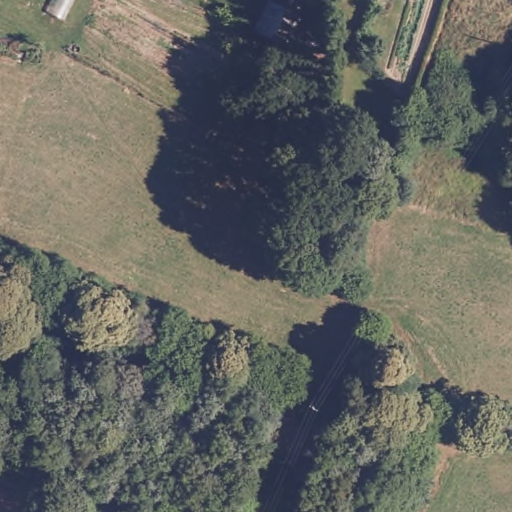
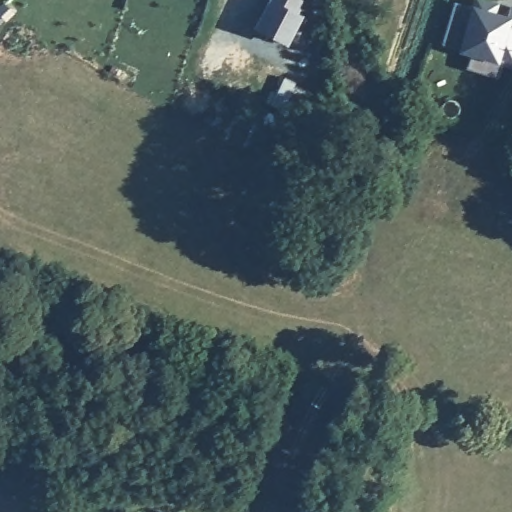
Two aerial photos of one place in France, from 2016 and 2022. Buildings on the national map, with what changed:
unchanged [(253,24),(264,0),(292,0),(290,6),(297,9),(283,39),(253,24)]
new [(499,66),(496,77),(466,69),(472,54),(458,50),(441,45),(456,2),(470,7),(472,0),(485,0),(495,4),(492,13),(508,17),(510,5),(512,5),(512,69),(499,66)]

